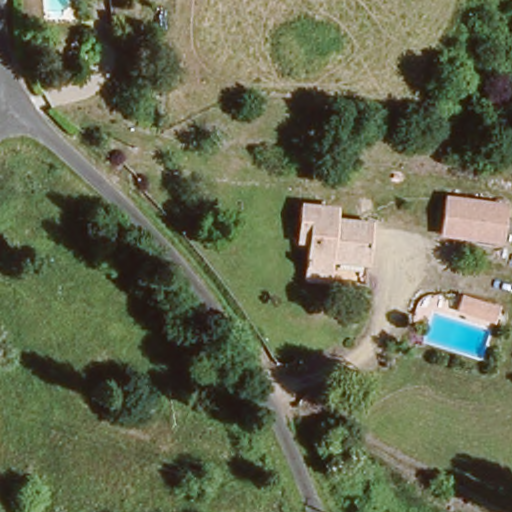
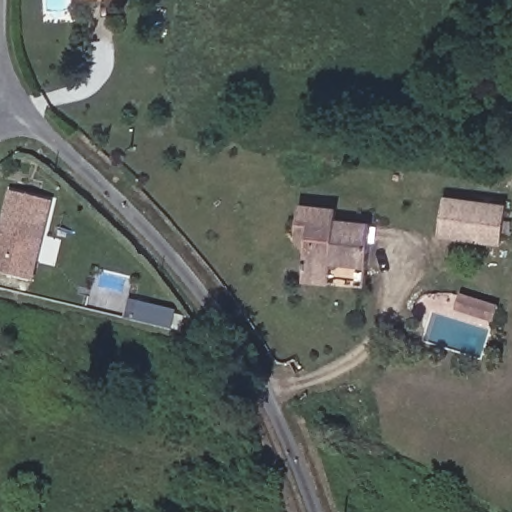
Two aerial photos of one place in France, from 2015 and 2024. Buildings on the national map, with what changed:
new [(1,226),(10,191),(54,202),(36,281),(0,274),(0,226),(1,226)]
unchanged [(302,278),(304,262),(307,234),(298,232),(301,199),(340,203),(337,215),(377,220),(372,260),(332,257),(331,265),(330,281),(302,278)]
unchanged [(506,209),(501,245),(440,236),(443,200),(506,209)]
unchanged [(506,309),(502,324),(453,311),(458,295),(506,309)]

